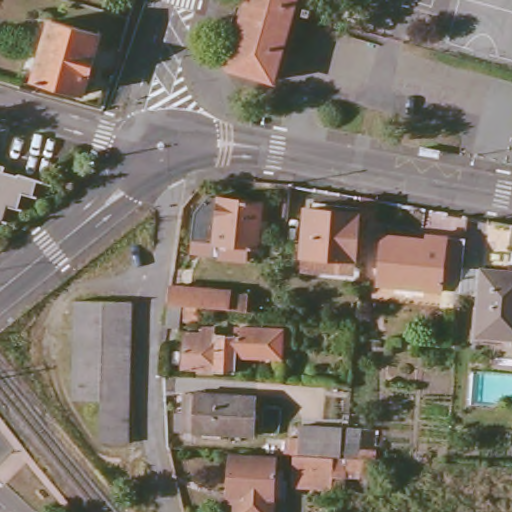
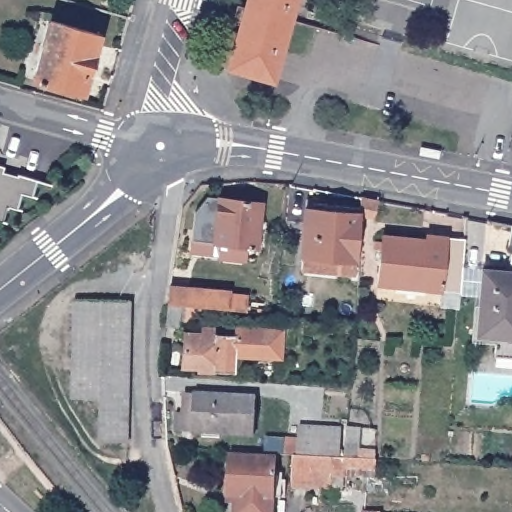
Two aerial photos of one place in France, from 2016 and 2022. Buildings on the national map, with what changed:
unchanged [(271,76),(226,62),(244,0),(293,0),(271,76)]
unchanged [(100,37),(83,95),(35,82),(53,23),(100,37)]
unchanged [(4,167),(17,171),(19,169),(37,174),(32,192),(24,191),(17,206),(7,204),(2,217),(1,220),(0,220),(0,162),(4,163),(4,167)]
unchanged [(207,193),(261,197),(256,243),(220,240),(219,253),(190,250),(195,209),(207,193)]
unchanged [(295,267),(300,221),(355,224),(357,209),(374,212),(372,230),(355,228),(350,271),(295,267)]
unchanged [(509,246),(512,231),(512,247),(509,246)]
unchanged [(462,235),(457,288),(373,281),(376,247),(370,246),(370,239),(377,239),(377,232),(421,236),(422,232),(462,235)]
unchanged [(494,345),(495,325),(477,323),(483,261),(507,262),(507,268),(512,269),(512,347),(494,345)]
unchanged [(165,319),(166,298),(167,280),(224,287),(222,305),(207,303),(207,317),(185,316),(185,301),(180,300),(180,321),(165,319)]
unchanged [(97,436),(99,400),(67,399),(72,298),(129,300),(127,442),(102,441),(97,441),(97,436)]
unchanged [(282,328),(280,357),(234,352),(233,369),(213,368),(213,367),(199,366),(199,362),(184,362),(185,330),(202,331),(202,323),(215,323),(215,328),(235,329),(235,323),(282,328)]
unchanged [(251,394),(249,433),(197,430),(187,429),(190,391),(251,394)]
unchanged [(287,451),(282,451),(285,423),(334,425),(330,453),(287,451)]
unchanged [(357,427),(355,455),(340,453),(342,427),(357,427)]
unchanged [(330,453),(337,453),(335,483),(310,483),(287,482),(287,451),(330,453)]
unchanged [(275,473),(282,473),(280,498),(272,498),(271,512),(233,512),(234,503),(240,502),(240,497),(228,496),(230,457),(275,459),(275,473)]

